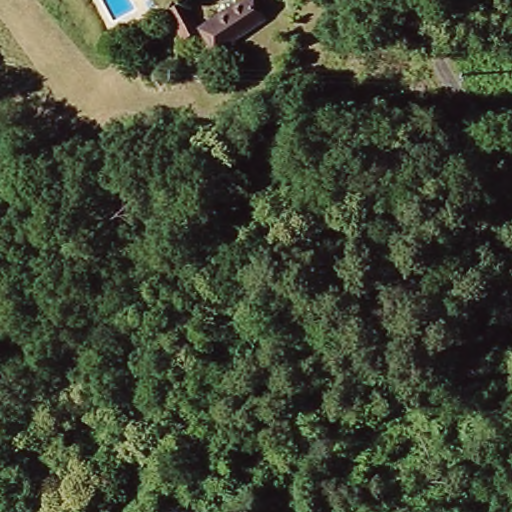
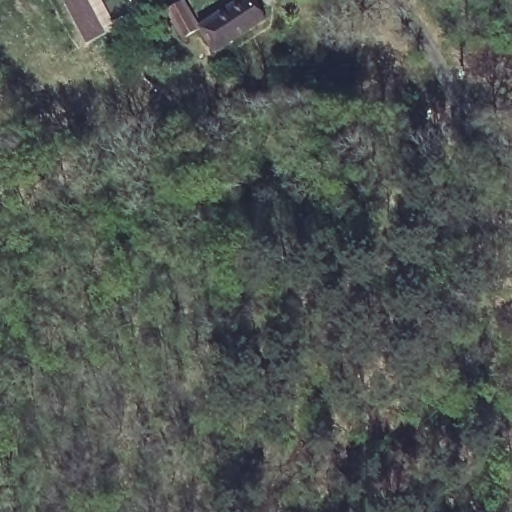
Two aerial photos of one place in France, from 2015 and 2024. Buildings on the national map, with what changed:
new [(64,0),(89,0),(106,33),(87,43),(64,0)]
unchanged [(177,42),(157,5),(162,1),(164,0),(181,0),(199,25),(177,42)]
unchanged [(238,0),(253,0),(266,21),(215,52),(199,25),(238,0)]

